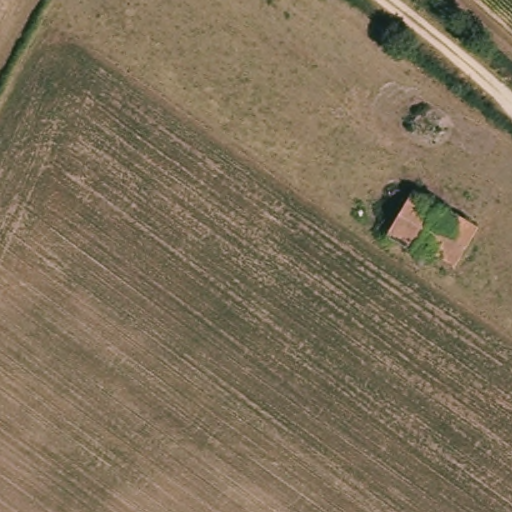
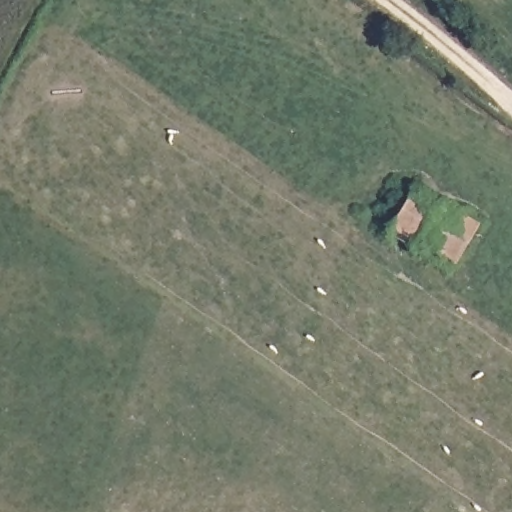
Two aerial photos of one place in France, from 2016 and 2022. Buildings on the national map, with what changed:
unchanged [(480,231),(457,268),(419,244),(413,252),(388,236),(415,191),(480,231)]

